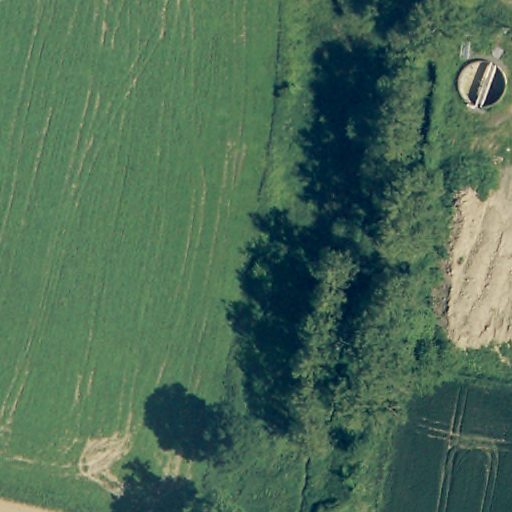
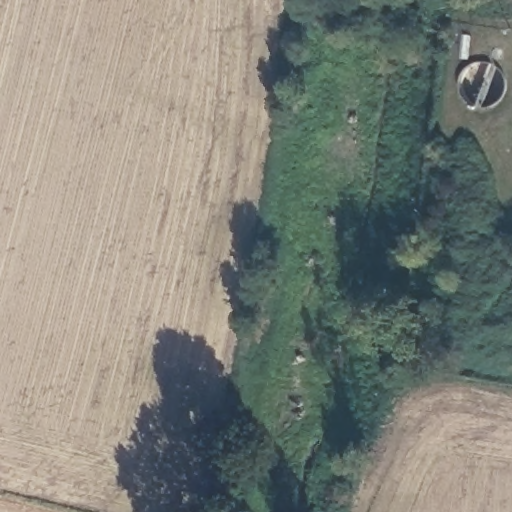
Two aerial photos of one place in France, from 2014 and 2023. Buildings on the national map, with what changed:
unchanged [(488,60),(491,60),(495,61),(499,62),(502,65),(504,67),(507,71),(508,74),(509,77),(509,82),(509,86),(508,89),(506,92),(504,96),(501,99),(498,101),(495,102),(491,103),(487,104),(483,103),(480,102),(476,101),(473,98),(470,96),(468,92),(467,89),(466,85),(465,81),(466,77),(467,74),(468,70),(471,67),(473,65),(477,62),(480,61),(484,60),(488,60)]

